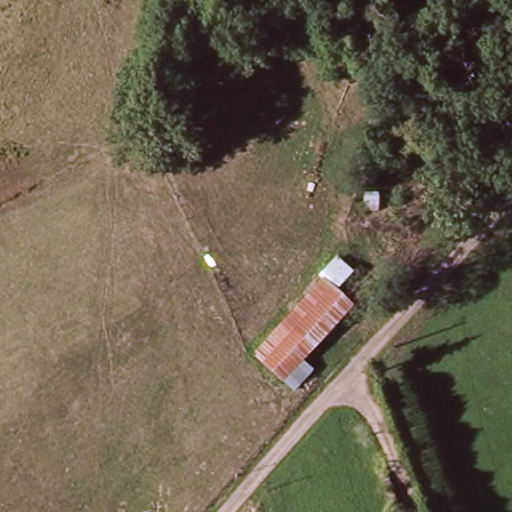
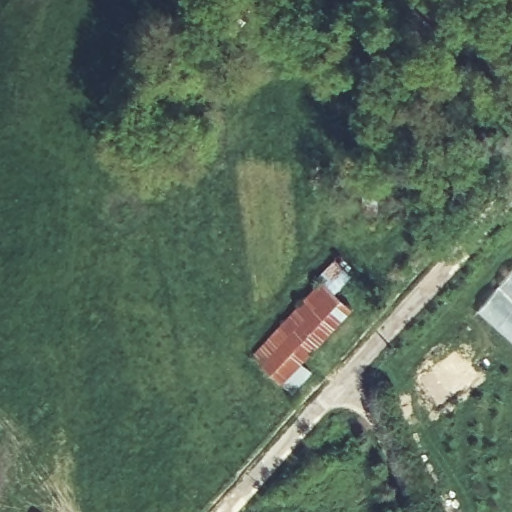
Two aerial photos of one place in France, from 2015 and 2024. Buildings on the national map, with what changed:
new [(512,341),(478,310),(512,271),(512,341)]
unchanged [(323,287),(346,306),(285,381),(260,362),(323,287)]

